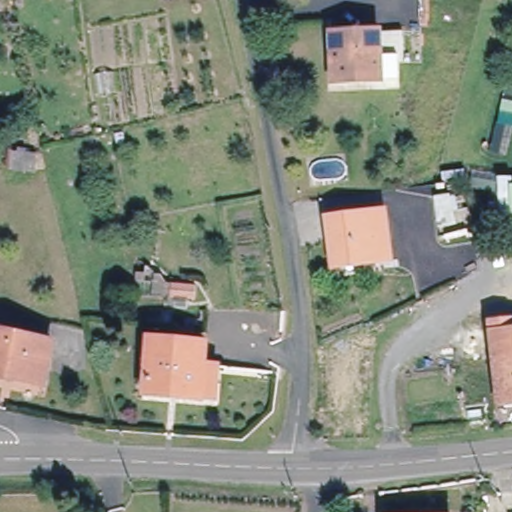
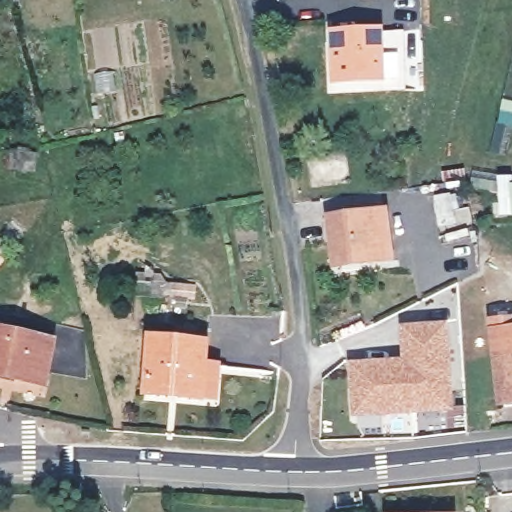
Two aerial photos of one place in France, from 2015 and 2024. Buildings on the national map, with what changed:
unchanged [(335,84),(336,36),(382,36),(381,84),(364,84),(352,84),(335,84)]
unchanged [(32,168),(14,166),(16,151),(34,154),(32,168)]
unchanged [(386,212),(392,259),(337,266),(331,219),(386,212)]
unchanged [(194,283),(192,296),(171,294),(172,282),(194,283)]
unchanged [(512,404),(501,405),(492,323),(512,321),(512,404)]
new [(405,345),(405,326),(447,325),(448,406),(411,406),(411,409),(352,410),(351,361),(405,359),(405,345)]
unchanged [(42,383),(0,373),(0,329),(52,341),(42,383)]
unchanged [(216,396),(202,395),(146,391),(150,337),(206,342),(204,362),(219,364),(216,396)]

